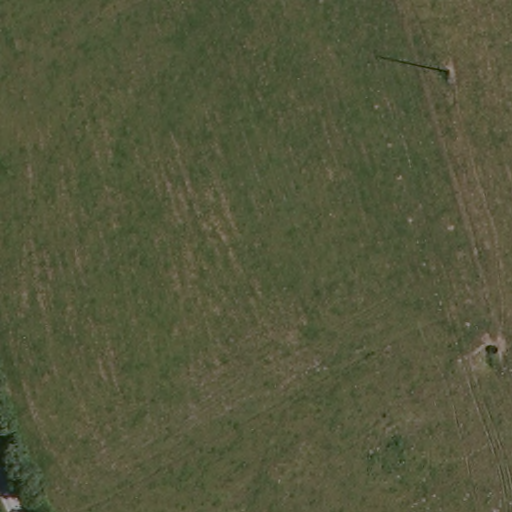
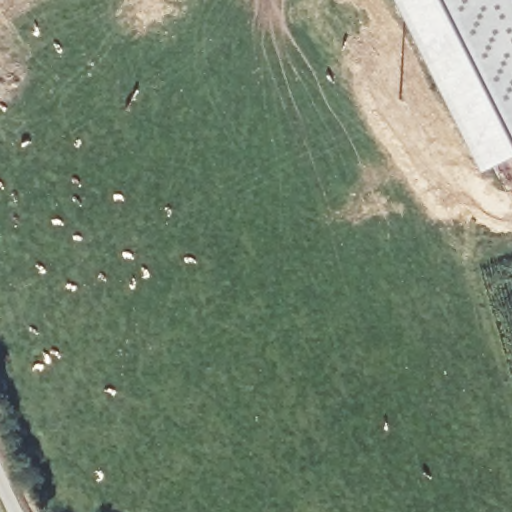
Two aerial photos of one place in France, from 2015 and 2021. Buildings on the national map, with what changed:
new [(512,0),(512,154),(477,170),(393,0),(512,0)]

